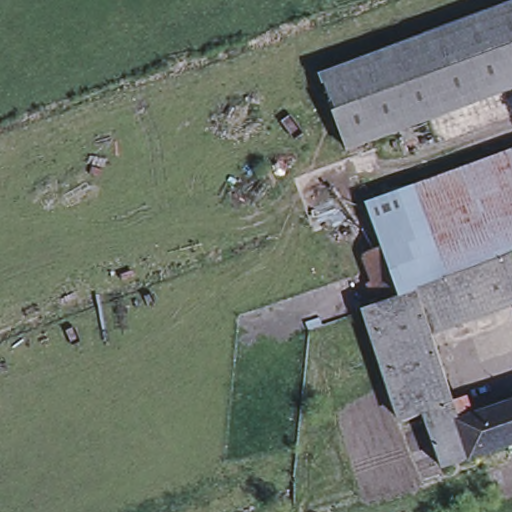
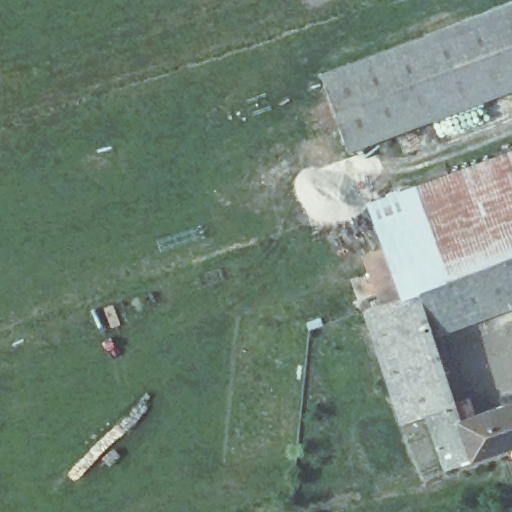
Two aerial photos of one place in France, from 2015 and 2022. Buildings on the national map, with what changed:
unchanged [(512,4),(512,87),(346,145),(321,71),(512,4)]
unchanged [(358,254),(373,249),(358,204),(512,151),(512,294),(433,322),(460,402),(424,416),(424,417),(397,426),(358,311),(376,305),(358,254)]
unchanged [(460,402),(468,425),(512,408),(512,454),(448,477),(424,417),(424,416),(460,402)]

